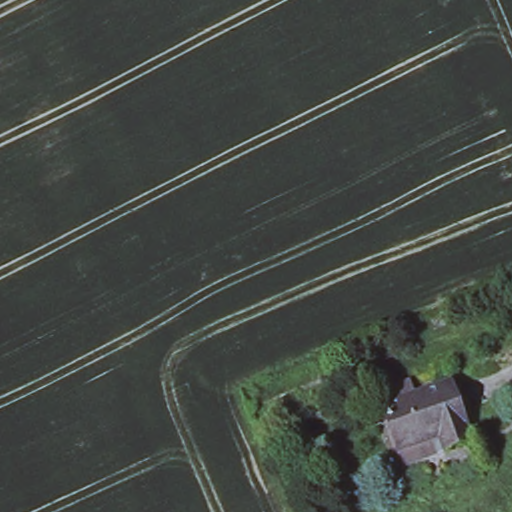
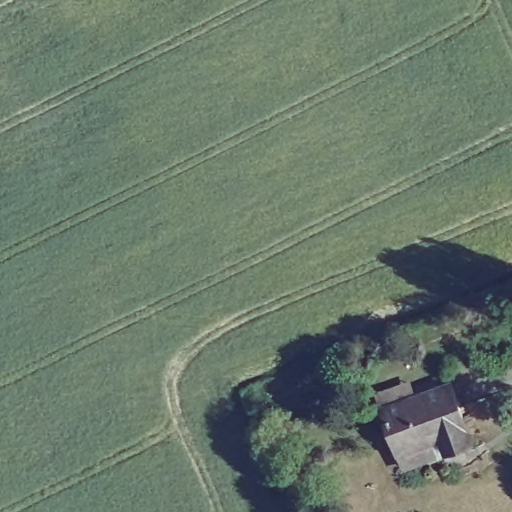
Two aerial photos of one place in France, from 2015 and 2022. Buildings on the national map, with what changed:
unchanged [(399,444),(384,402),(379,389),(418,375),(422,388),(449,379),(470,436),(445,444),(404,459),(399,444)]

